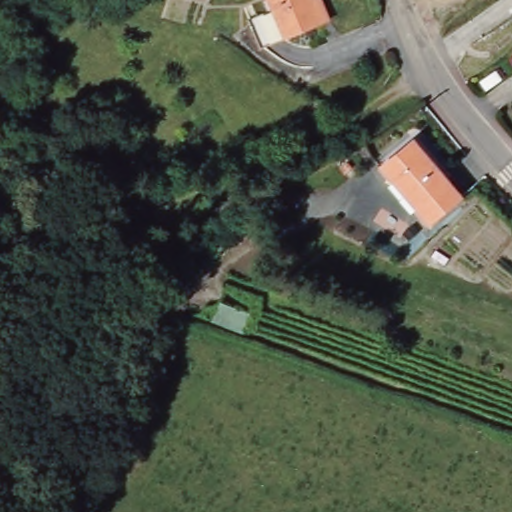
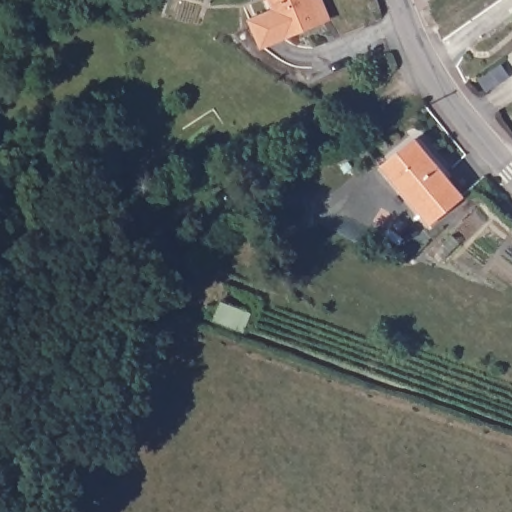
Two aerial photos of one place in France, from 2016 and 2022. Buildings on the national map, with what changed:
unchanged [(272,4),(270,0),(317,0),(324,17),(285,34),(261,44),(248,14),(272,4)]
unchanged [(417,133),(468,192),(433,221),(384,162),(417,133)]
unchanged [(252,308),(245,331),(212,320),(221,299),(252,308)]

